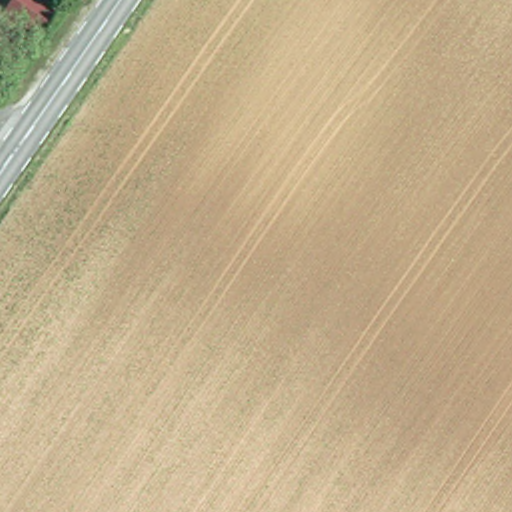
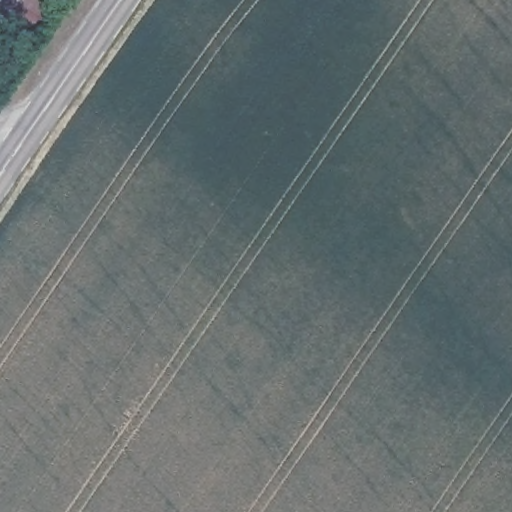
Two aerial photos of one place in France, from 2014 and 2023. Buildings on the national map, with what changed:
unchanged [(46,0),(60,9),(40,36),(7,13),(17,0),(46,0)]

